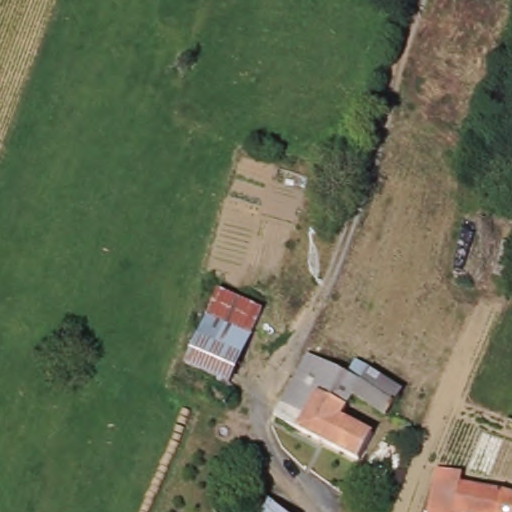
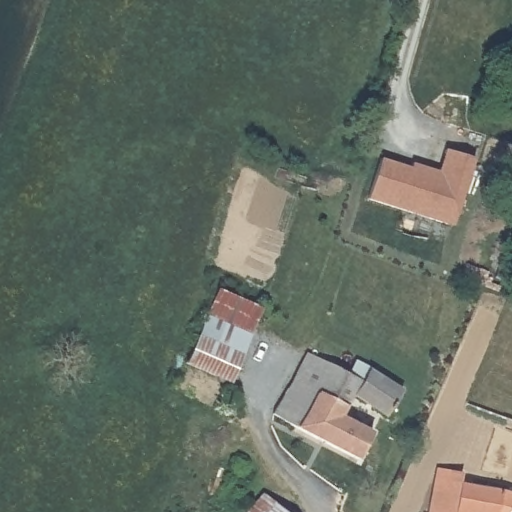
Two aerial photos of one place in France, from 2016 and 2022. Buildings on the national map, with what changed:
new [(369,197),(381,159),(412,169),(414,162),(439,170),(446,151),(477,160),(454,225),(369,197)]
unchanged [(219,291),(262,310),(250,335),(208,317),(219,291)]
unchanged [(250,335),(228,385),(185,365),(208,317),(250,335)]
unchanged [(345,372),(368,385),(374,372),(407,393),(403,400),(396,412),(392,417),(358,397),(352,408),(345,420),(374,435),(359,462),(279,418),(289,400),(312,413),(319,399),(297,387),(313,356),(345,372)]
unchanged [(235,474),(230,470),(234,465),(239,468),(235,474)]
unchanged [(430,476),(431,473),(433,467),(439,469),(459,473),(457,478),(456,481),(473,484),(499,489),(512,493),(512,512),(423,512),(430,476)]
unchanged [(283,512),(247,512),(262,495),(283,512)]

